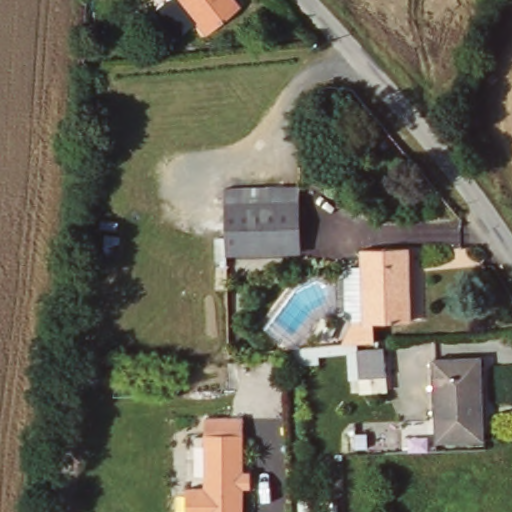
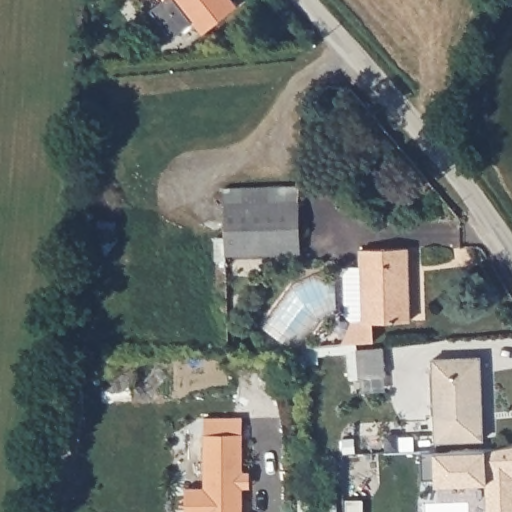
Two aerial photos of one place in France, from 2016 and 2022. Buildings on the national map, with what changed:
unchanged [(173,0),(179,0),(197,18),(173,40),(150,13),(163,0),(169,0),(171,2),(173,0)]
unchanged [(169,0),(173,0),(171,2),(169,0)]
unchanged [(179,0),(244,0),(211,31),(179,0)]
unchanged [(301,199),(300,251),(225,249),(227,198),(301,199)]
unchanged [(363,343),(349,344),(350,323),(355,323),(355,319),(346,312),(345,271),(352,263),(365,263),(366,247),(412,247),(414,318),(381,319),(381,342),(363,343)]
unchanged [(391,348),(392,371),(366,372),(363,349),(391,348)]
unchanged [(485,360),(488,441),(440,442),(438,360),(485,360)]
unchanged [(207,435),(246,437),(244,475),(251,475),(251,488),(244,488),(242,512),(185,512),(186,486),(205,488),(207,435)]
new [(487,482),(437,484),(437,479),(421,480),(420,451),(435,451),(485,449),(512,444),(512,512),(488,512),(487,482)]

